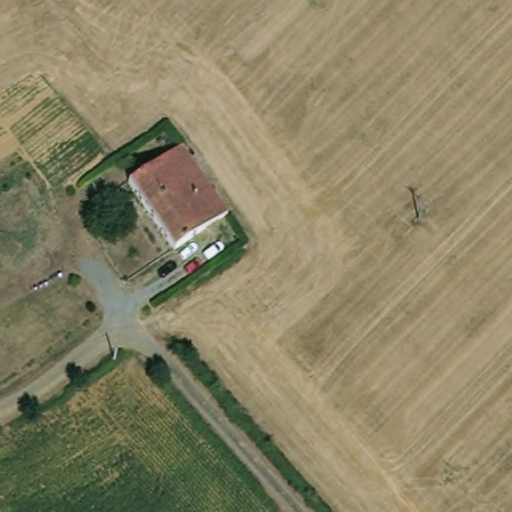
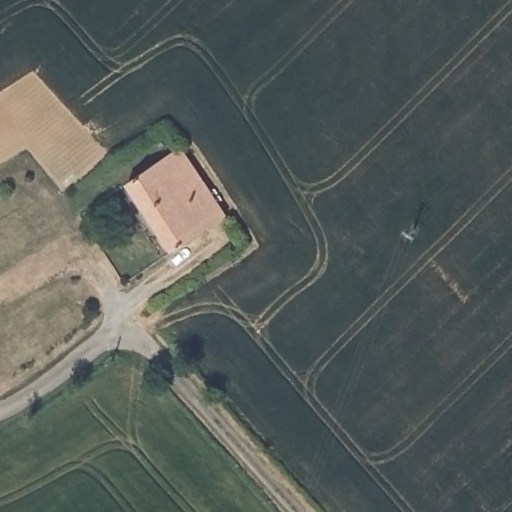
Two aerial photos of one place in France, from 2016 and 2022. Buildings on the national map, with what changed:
unchanged [(130,181),(183,148),(229,217),(175,251),(130,181)]

